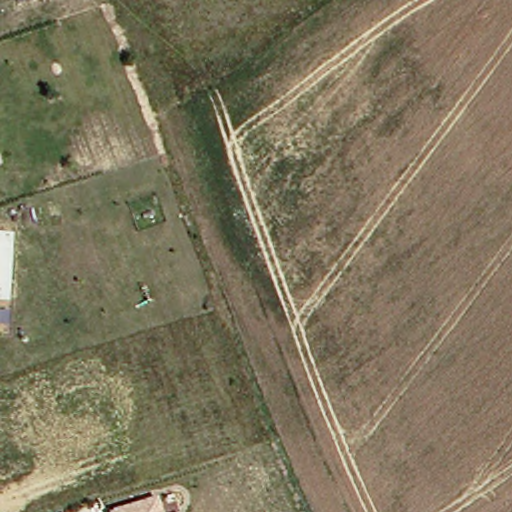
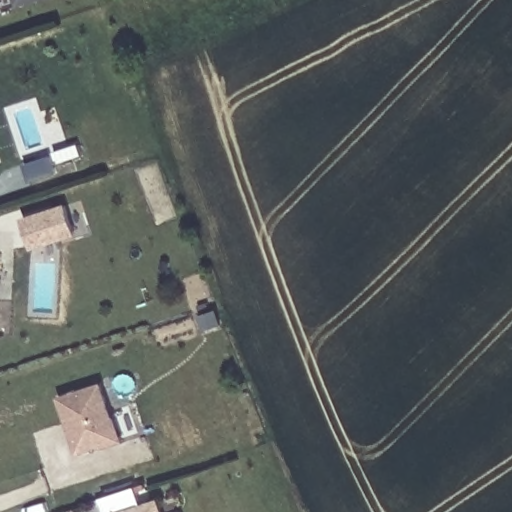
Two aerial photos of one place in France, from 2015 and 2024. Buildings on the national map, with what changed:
unchanged [(16,9),(13,0),(45,0),(16,9)]
new [(61,204),(70,231),(27,245),(19,217),(61,204)]
new [(101,382),(113,417),(115,418),(122,440),(101,449),(99,448),(76,454),(57,396),(101,382)]
unchanged [(158,512),(113,512),(155,499),(158,512)]

